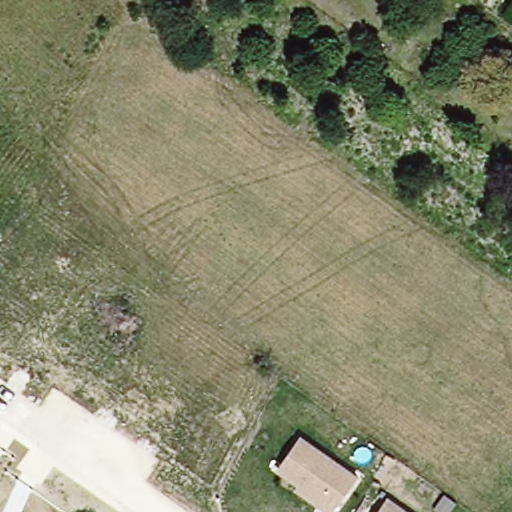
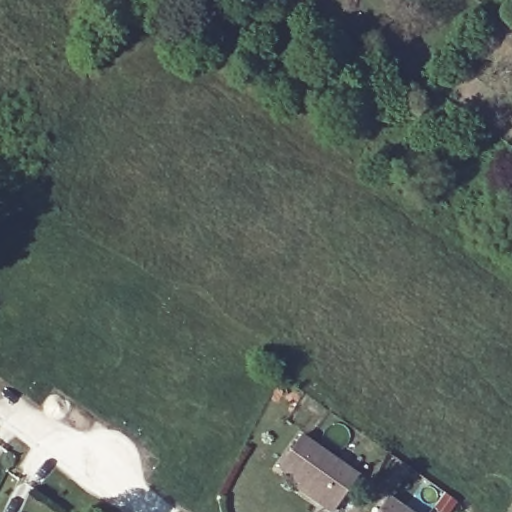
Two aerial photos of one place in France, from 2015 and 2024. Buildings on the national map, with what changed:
unchanged [(334,512),(327,512),(294,490),(297,484),(277,470),(300,435),(360,475),(334,512)]
unchanged [(406,512),(376,512),(385,498),(406,512)]

